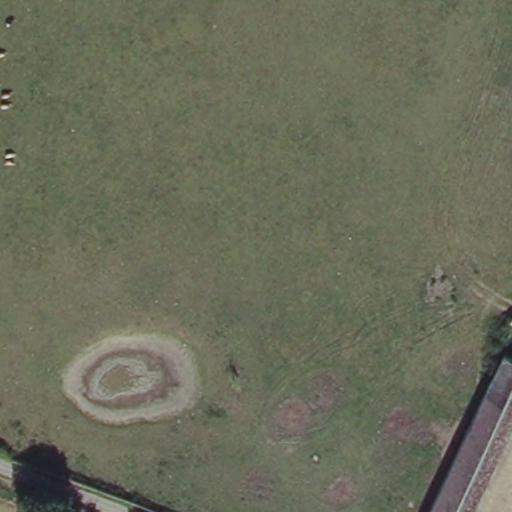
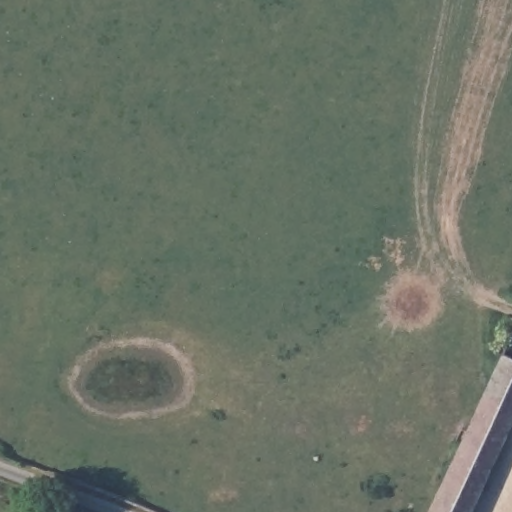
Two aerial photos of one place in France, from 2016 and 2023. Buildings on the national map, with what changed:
unchanged [(512,364),(512,403),(466,512),(424,512),(491,355),(512,364)]

